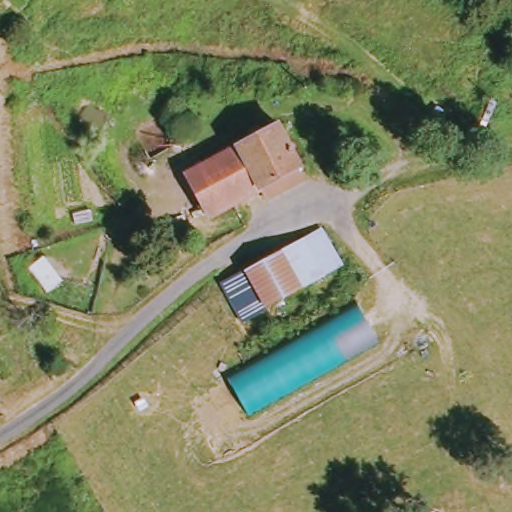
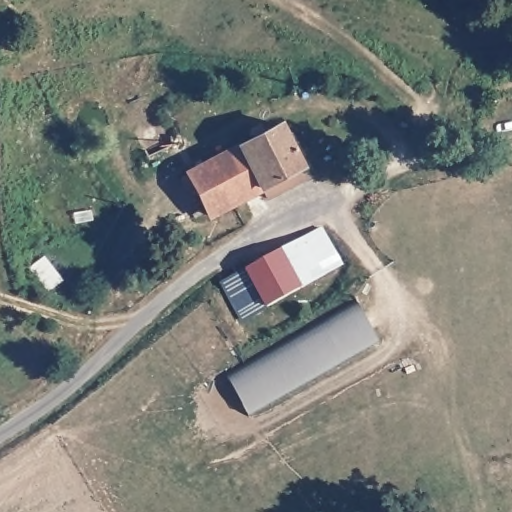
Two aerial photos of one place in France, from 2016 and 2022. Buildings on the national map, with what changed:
unchanged [(267,202),(260,191),(211,216),(186,172),(279,124),(302,170),(308,182),(267,202)]
unchanged [(349,263),(315,286),(270,312),(248,272),(282,250),(327,226),(349,263)]
unchanged [(383,347),(254,417),(229,378),(358,303),(383,347)]

